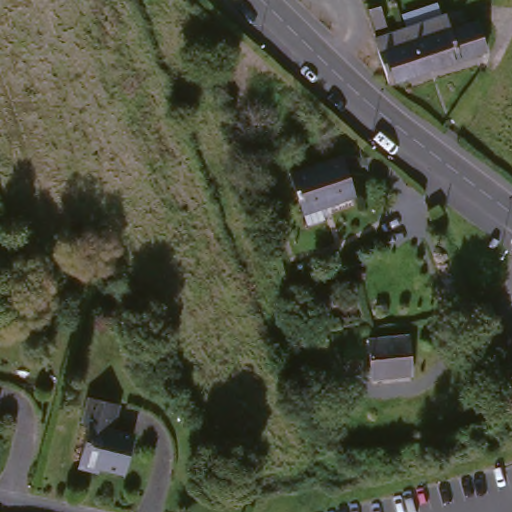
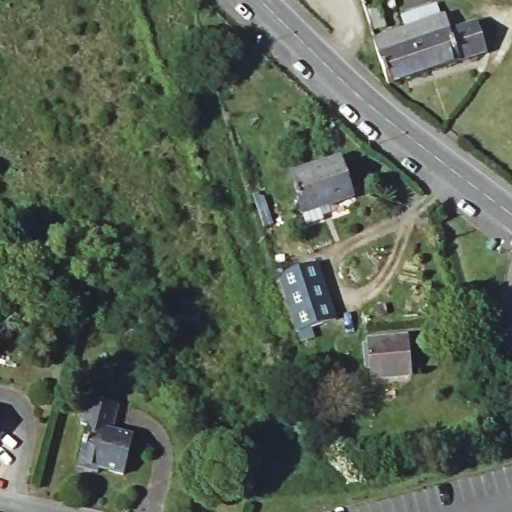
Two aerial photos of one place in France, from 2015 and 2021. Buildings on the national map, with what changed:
unchanged [(368,13),(376,10),(383,29),(373,32),(368,13)]
unchanged [(442,19),(448,35),(474,26),(484,56),(387,89),(371,42),(442,19)]
unchanged [(305,226),(301,214),(288,174),(340,157),(353,197),(318,208),(323,220),(305,226)]
new [(279,274),(318,262),(336,319),(298,332),(279,274)]
unchanged [(410,375),(371,379),(368,340),(406,336),(410,375)]
unchanged [(118,405),(115,433),(129,435),(124,477),(76,471),(81,400),(118,405)]

